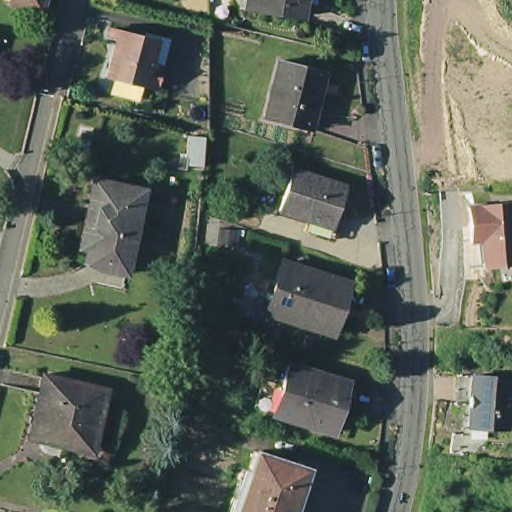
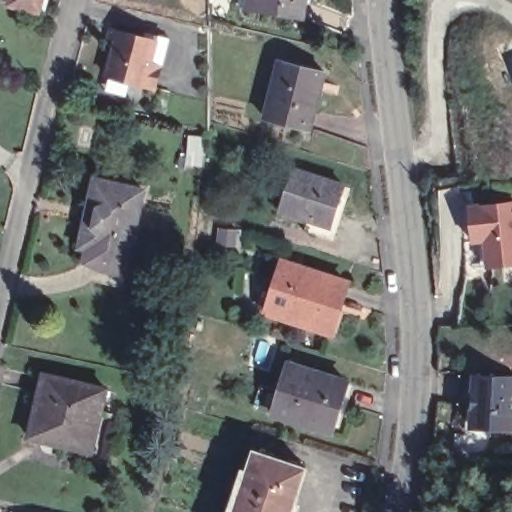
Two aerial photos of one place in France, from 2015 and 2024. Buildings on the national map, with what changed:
unchanged [(9,4),(10,0),(42,0),(39,11),(9,4)]
unchanged [(255,0),(303,0),(301,11),(255,3),(255,0)]
unchanged [(102,76),(111,38),(105,36),(106,29),(151,40),(152,35),(162,37),(155,66),(150,88),(102,76)]
unchanged [(280,61),(323,71),(309,129),(265,118),(280,61)]
unchanged [(203,174),(185,173),(188,136),(205,136),(203,174)]
unchanged [(279,209),(292,169),(343,186),(335,212),(331,226),(279,209)]
unchanged [(102,268),(84,261),(88,248),(95,210),(88,208),(94,180),(143,190),(128,257),(125,273),(102,268)]
unchanged [(478,244),(471,245),(468,211),(512,206),(512,267),(486,270),(486,266),(480,267),(478,244)]
unchanged [(266,311),(282,262),(346,282),(330,332),(266,311)]
unchanged [(330,436),(272,419),(287,369),(345,386),(330,436)]
unchanged [(472,370),(512,372),(512,381),(510,423),(470,421),(472,370)]
unchanged [(105,389),(91,451),(28,437),(42,375),(105,389)]
unchanged [(304,472),(291,512),(235,512),(254,455),(304,472)]

